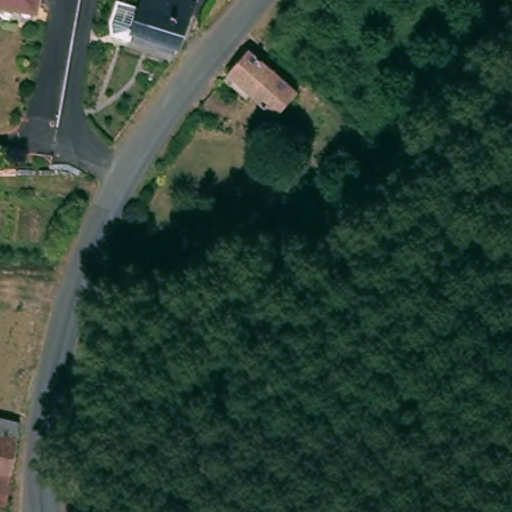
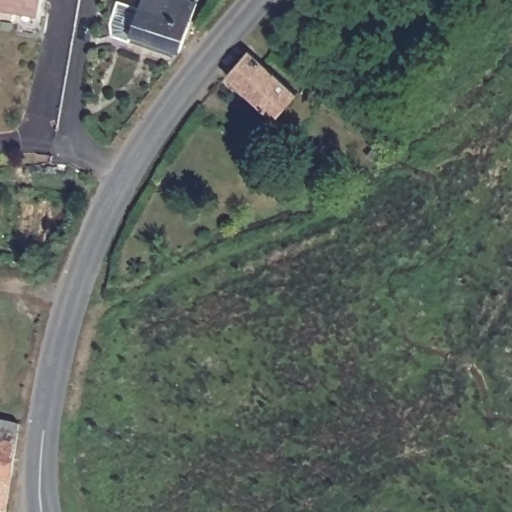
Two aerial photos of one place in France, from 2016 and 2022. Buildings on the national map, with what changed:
unchanged [(0,12),(0,0),(41,0),(40,10),(39,18),(21,15),(0,12)]
unchanged [(181,50),(180,51),(131,34),(142,0),(184,0),(197,5),(182,49),(181,50)]
unchanged [(247,47),(292,97),(270,116),(228,74),(247,47)]
unchanged [(0,510),(0,420),(16,423),(8,471),(2,510),(0,510)]

